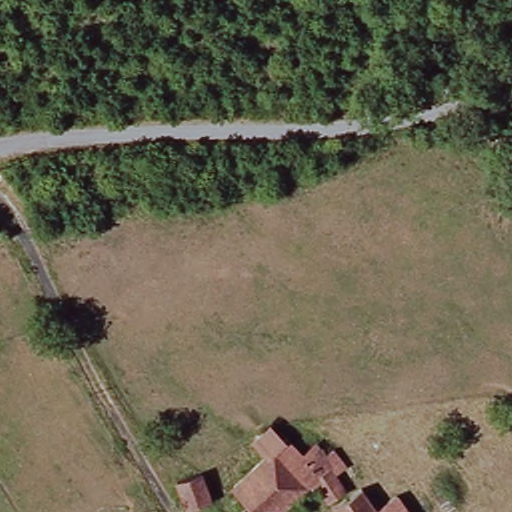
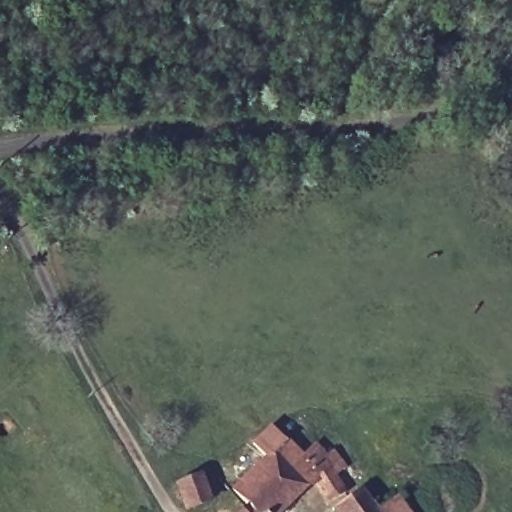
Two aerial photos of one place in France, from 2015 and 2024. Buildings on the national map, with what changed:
unchanged [(231,492),(264,463),(251,449),(269,435),(282,451),(286,447),(299,461),(246,510),(231,492)]
unchanged [(327,453),(341,468),(333,475),(346,490),(336,499),(316,481),(283,512),(244,512),(246,510),(299,461),(311,452),(319,459),(327,453)]
unchanged [(209,477),(218,505),(200,512),(192,512),(183,487),(209,477)]
unchanged [(336,505),(369,482),(388,508),(407,496),(418,512),(340,512),(336,505)]

